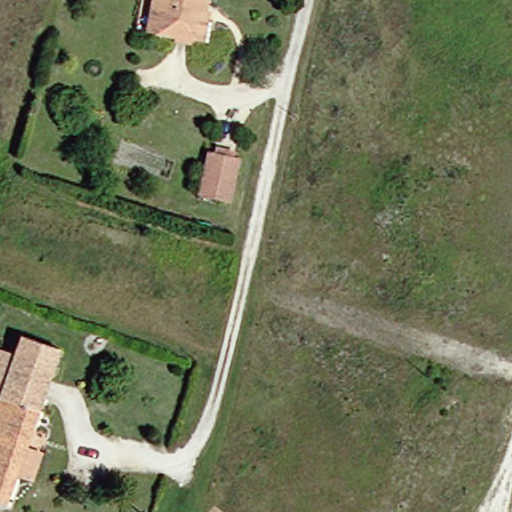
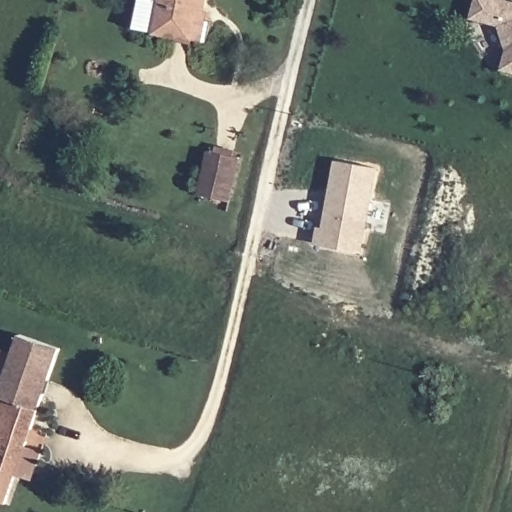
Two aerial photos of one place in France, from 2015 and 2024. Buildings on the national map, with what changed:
unchanged [(143,4),(153,5),(154,0),(201,0),(199,9),(207,10),(202,45),(155,40),(141,40),(143,4)]
new [(476,0),(491,0),(512,5),(512,73),(502,70),(507,52),(498,26),(471,18),(476,0)]
unchanged [(234,164),(224,209),(191,199),(201,155),(234,164)]
new [(363,253),(315,244),(317,225),(323,227),(335,159),(380,167),(363,253)]
unchanged [(0,389),(0,340),(13,344),(0,389)]
unchanged [(11,477),(1,506),(0,506),(0,389),(13,344),(52,357),(21,451),(34,456),(26,484),(11,477)]

